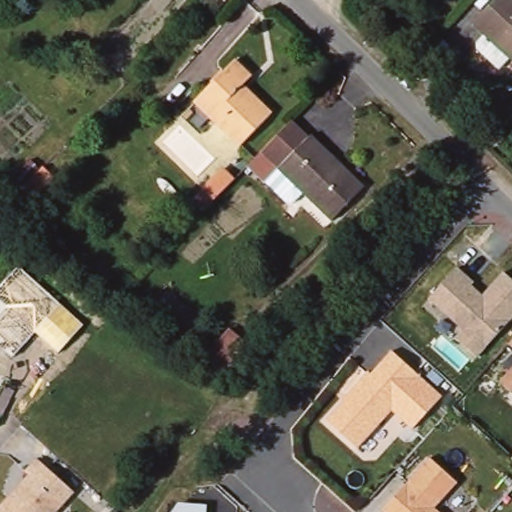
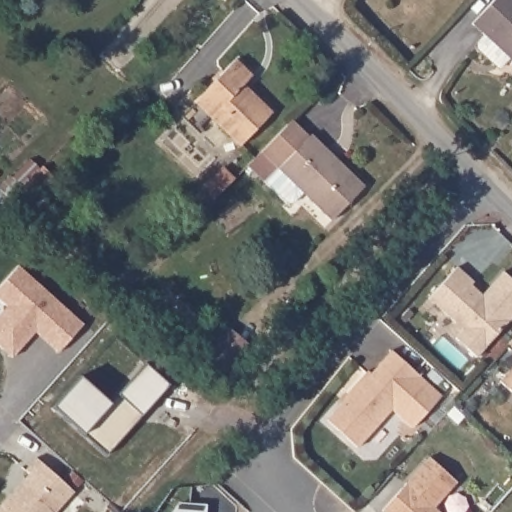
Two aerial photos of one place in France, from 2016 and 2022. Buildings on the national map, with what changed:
unchanged [(505,65),(484,46),(483,40),(491,32),(478,21),(499,0),(512,0),(512,58),(505,65)]
unchanged [(277,111),(246,143),(202,99),(240,59),(257,75),(249,83),(277,111)]
unchanged [(315,138),(320,132),(372,184),(337,219),(309,192),(299,202),(292,202),(254,164),(267,150),(297,120),(315,138)]
unchanged [(35,191),(25,201),(14,189),(10,193),(1,183),(12,172),(13,173),(32,156),(40,163),(44,159),(52,167),(31,188),(35,191)]
unchanged [(204,210),(192,199),(224,166),(236,177),(204,210)]
unchanged [(454,337),(463,328),(428,297),(456,266),(485,293),(507,271),(512,276),(512,319),(477,358),(454,337)]
unchanged [(35,333),(13,358),(0,346),(0,313),(6,306),(0,300),(0,287),(19,267),(84,325),(58,354),(35,333)]
unchanged [(229,329),(247,344),(222,374),(221,374),(204,359),(229,329)]
unchanged [(508,342),(512,338),(512,345),(508,342)]
unchanged [(442,393),(411,427),(391,409),(357,445),(327,416),(389,349),(442,393)]
new [(106,453),(54,404),(82,376),(110,403),(146,363),(169,384),(106,453)]
unchanged [(500,381),(512,367),(512,392),(500,381)]
unchanged [(54,512),(0,512),(0,501),(36,456),(73,491),(54,512)]
unchanged [(434,506),(440,512),(388,512),(383,508),(428,456),(457,482),(434,506)]
unchanged [(205,512),(170,512),(178,500),(206,502),(205,512)]

